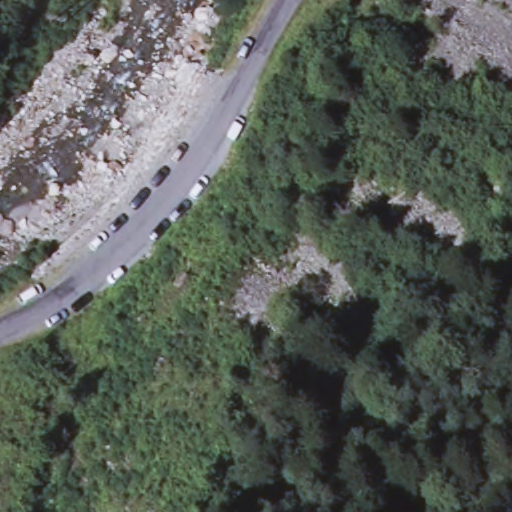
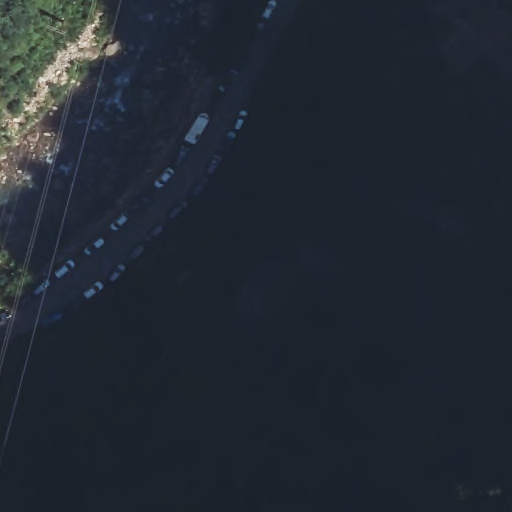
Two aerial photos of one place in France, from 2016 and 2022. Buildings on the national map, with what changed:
[]

